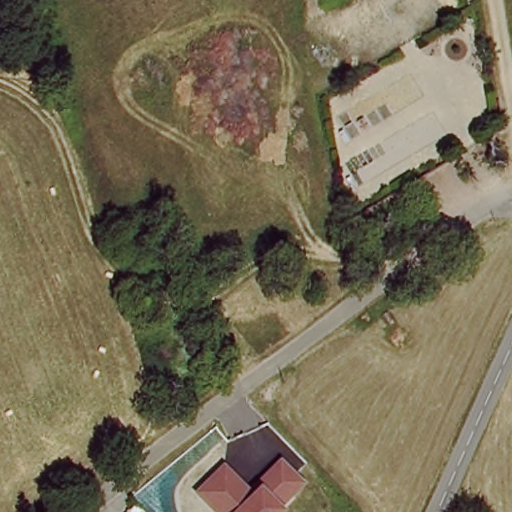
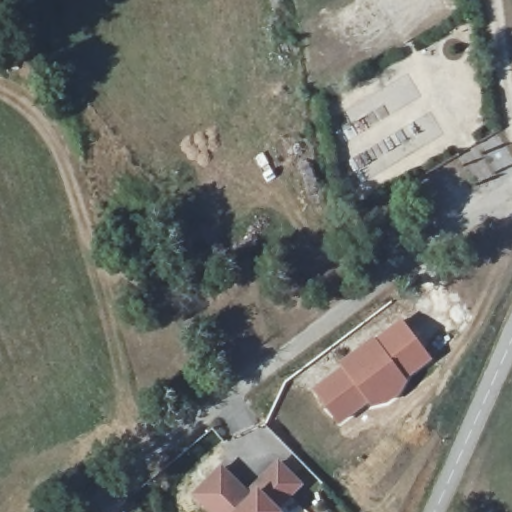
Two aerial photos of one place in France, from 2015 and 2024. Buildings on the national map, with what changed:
new [(339,367),(336,363),(368,339),(369,341),(393,320),(420,357),(397,378),(399,380),(392,392),(380,402),(366,405),(362,400),(333,423),(309,390),(339,367)]
unchanged [(278,458),(298,486),(276,512),(212,512),(190,488),(219,461),(245,488),(278,458)]

